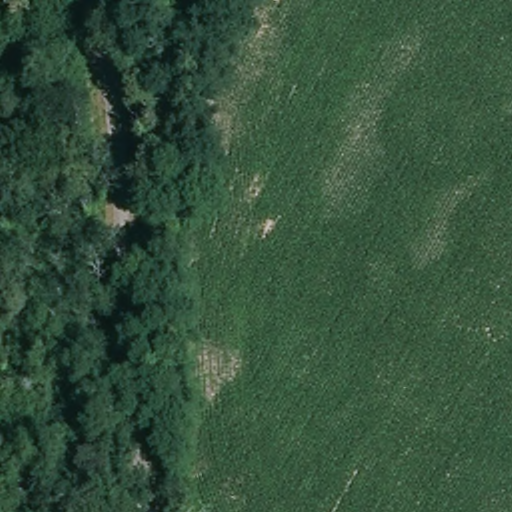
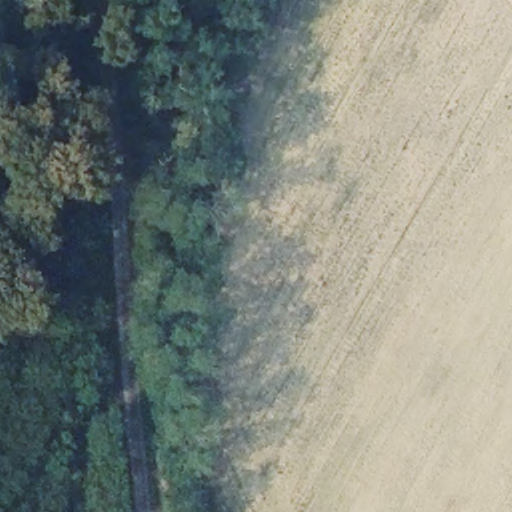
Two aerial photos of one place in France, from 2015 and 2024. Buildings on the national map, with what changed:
[]

